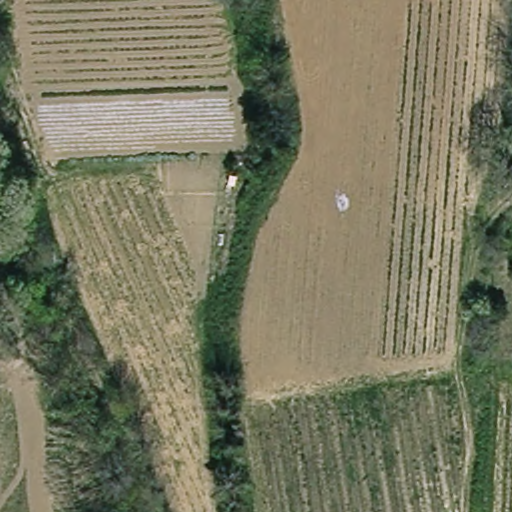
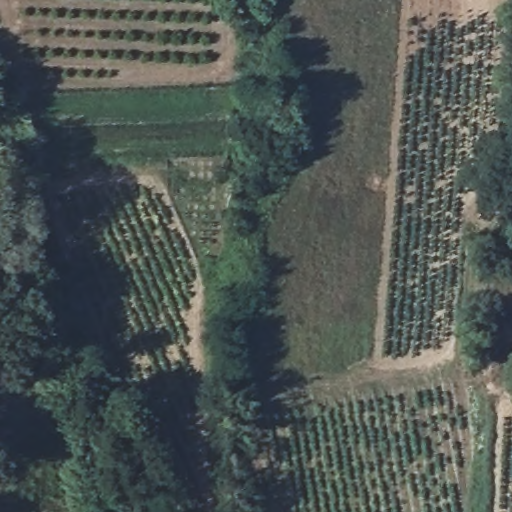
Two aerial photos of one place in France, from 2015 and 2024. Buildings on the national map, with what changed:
[]

